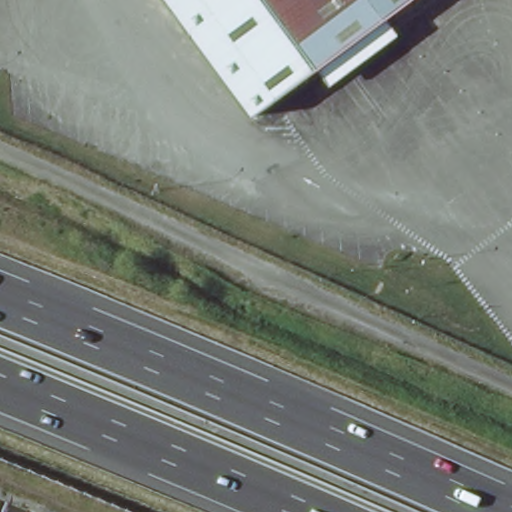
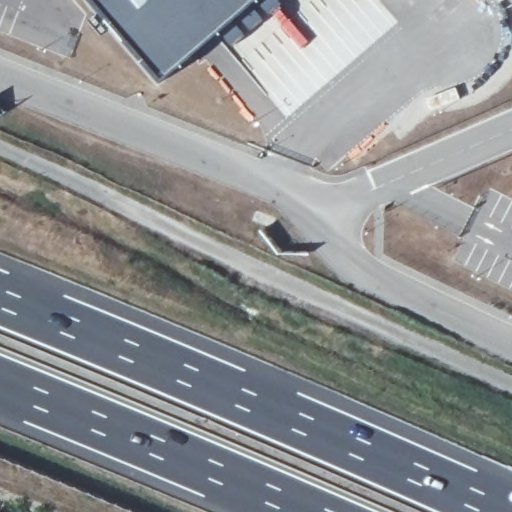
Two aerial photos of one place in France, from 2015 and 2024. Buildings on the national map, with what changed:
new [(255,0),(158,83),(87,0),(255,0)]
demolished [(167,0),(412,0),(253,114),(167,0)]

